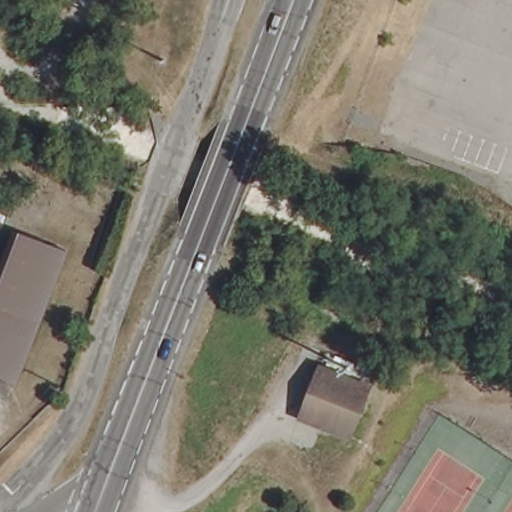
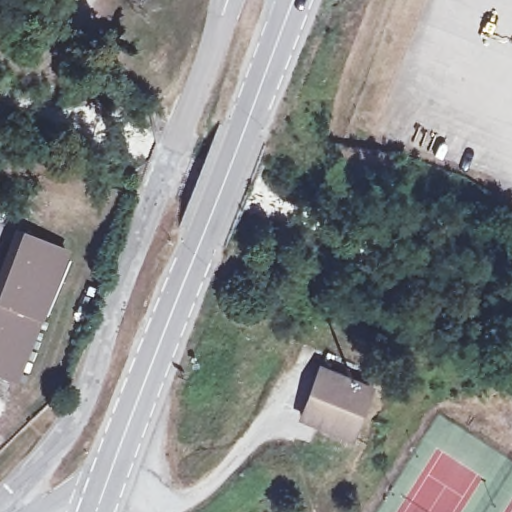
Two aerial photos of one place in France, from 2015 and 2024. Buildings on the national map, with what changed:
unchanged [(15,385),(0,379),(0,286),(21,233),(68,251),(15,385)]
unchanged [(369,386),(350,434),(301,415),(321,367),(369,386)]

